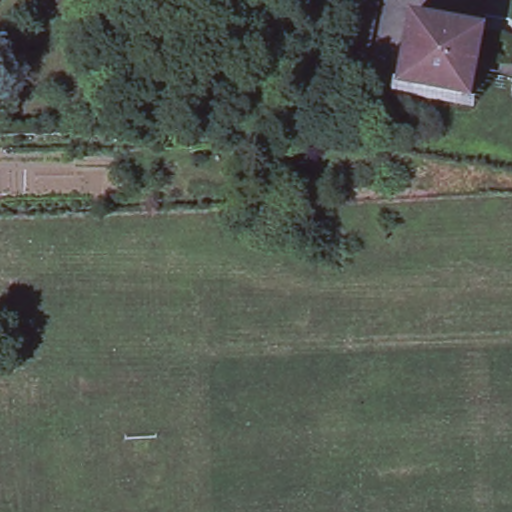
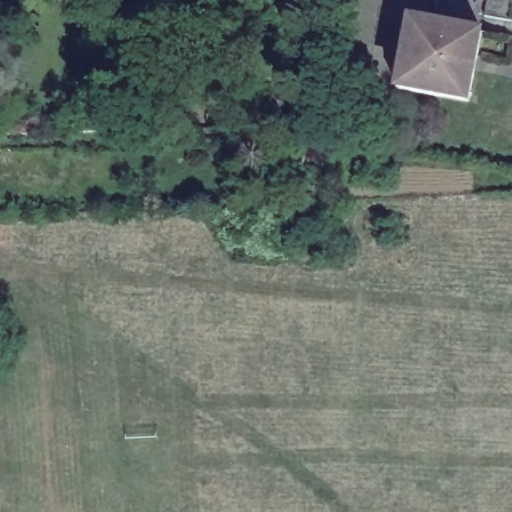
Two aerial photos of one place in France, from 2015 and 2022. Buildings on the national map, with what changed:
unchanged [(346,26),(349,14),(351,0),(379,0),(378,5),(377,15),(375,19),(373,32),(370,45),(368,59),(365,72),(363,85),(335,80),(338,67),(341,53),(343,40),(346,26)]
unchanged [(512,0),(512,20),(485,15),(487,1),(487,0),(512,0)]
unchanged [(468,96),(398,82),(411,11),(482,25),(475,65),(468,96)]

